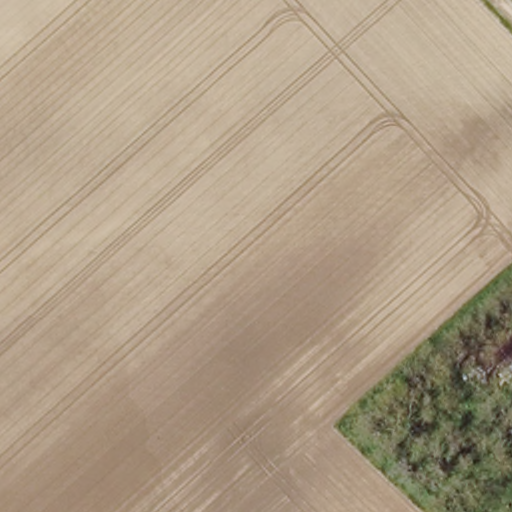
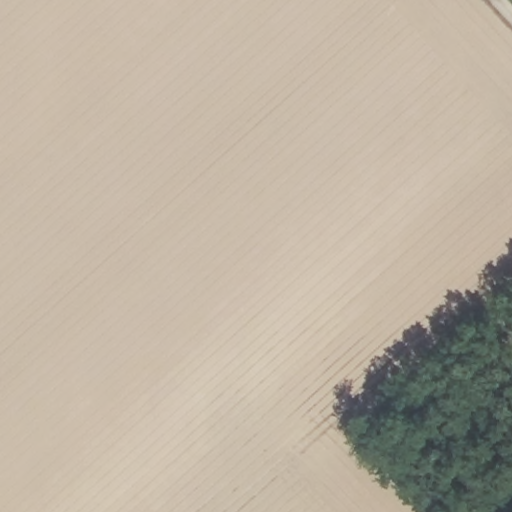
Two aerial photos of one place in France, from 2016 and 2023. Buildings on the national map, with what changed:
unchanged [(512,325),(512,364),(491,346),(512,325)]

